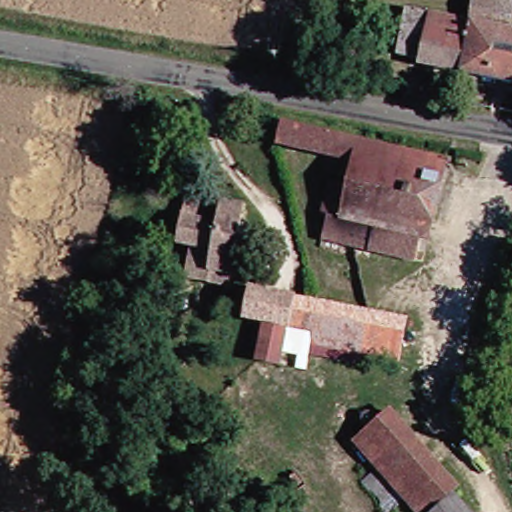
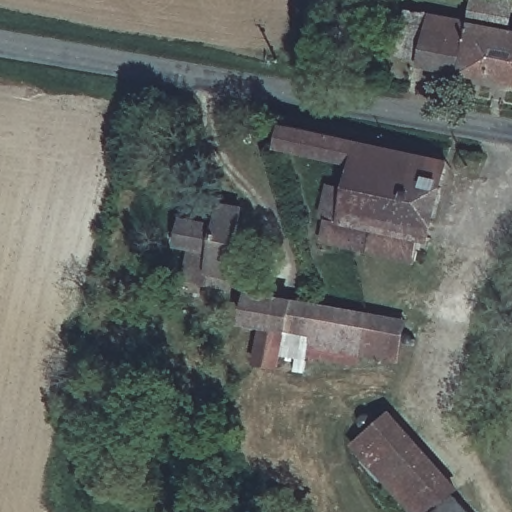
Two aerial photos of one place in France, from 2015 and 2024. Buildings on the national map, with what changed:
unchanged [(444,67),(444,62),(426,59),(405,55),(415,11),(436,15),(480,22),(482,6),(483,0),(512,0),(512,78),(444,67)]
unchanged [(332,184),(354,187),(359,161),(285,146),(290,122),(402,142),(402,146),(401,146),(381,244),(378,257),(347,251),(350,231),(333,227),(336,212),(328,212),(332,184)]
unchanged [(401,146),(402,146),(455,156),(439,233),(428,231),(423,252),(381,244),(401,146)]
unchanged [(204,216),(222,218),(225,200),(249,203),(232,298),(219,297),(222,279),(192,274),(196,241),(183,237),(190,196),(206,200),(204,216)]
unchanged [(270,322),(252,318),(257,287),(324,300),(319,331),(290,327),(284,363),(264,359),(270,322)]
unchanged [(324,300),(372,308),(366,348),(364,362),(316,352),(319,331),(324,300)]
unchanged [(406,356),(387,352),(366,348),(372,308),(412,315),(409,332),(406,356)]
unchanged [(312,368),(284,363),(290,327),(319,331),(316,352),(312,368)]
unchanged [(391,422),(462,492),(442,512),(421,512),(360,452),(391,422)]
unchanged [(465,498),(478,512),(451,512),(465,498)]

